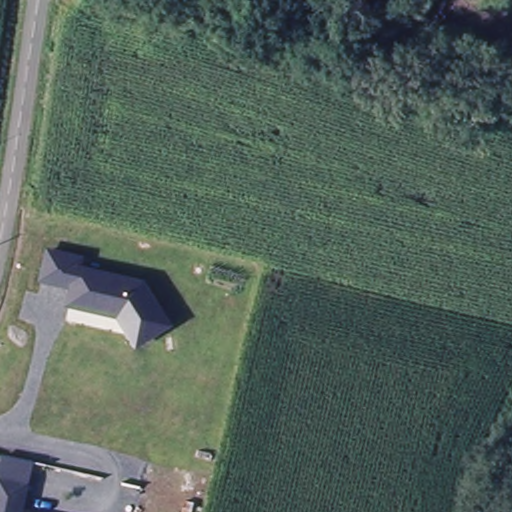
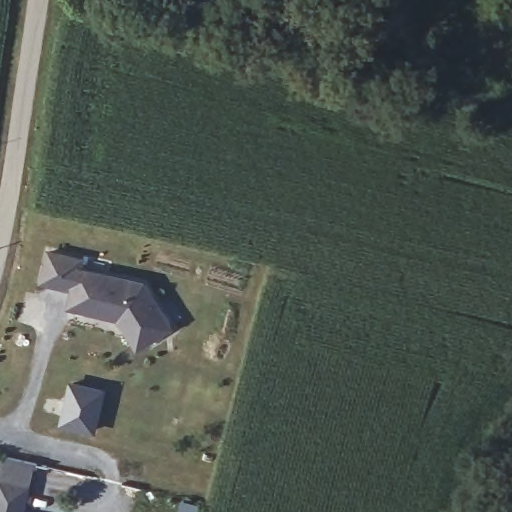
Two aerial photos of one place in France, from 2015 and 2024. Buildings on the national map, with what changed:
unchanged [(40,282),(46,247),(85,255),(84,265),(147,280),(174,325),(137,347),(117,318),(67,307),(70,289),(40,282)]
new [(69,379),(107,388),(97,431),(60,423),(69,379)]
unchanged [(35,464),(27,512),(0,512),(0,471),(2,459),(35,464)]

